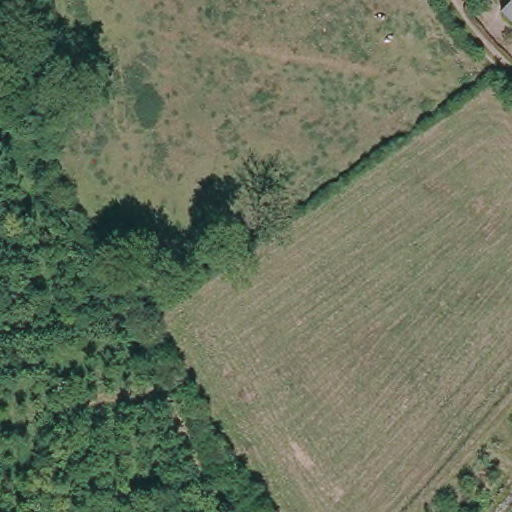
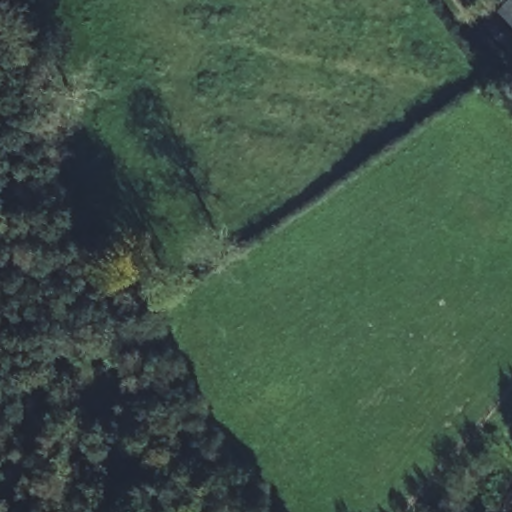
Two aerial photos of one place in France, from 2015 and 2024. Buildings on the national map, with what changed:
unchanged [(510,0),(512,0),(512,25),(499,12),(510,0)]

